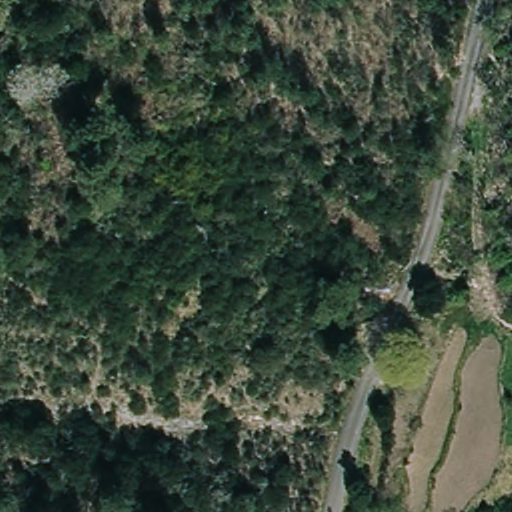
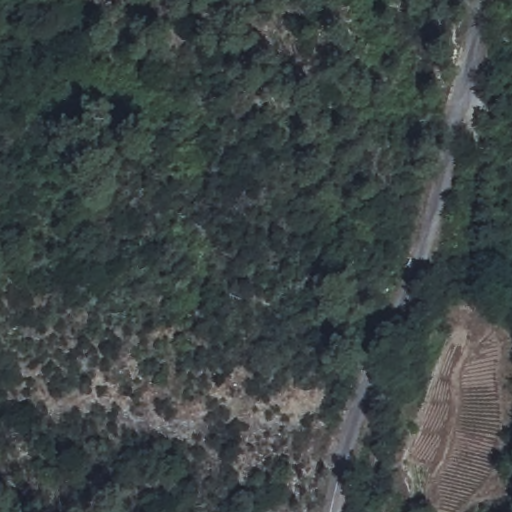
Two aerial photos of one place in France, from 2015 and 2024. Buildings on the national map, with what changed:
unchanged [(395,305),(355,302),(357,277),(399,280),(395,305)]

